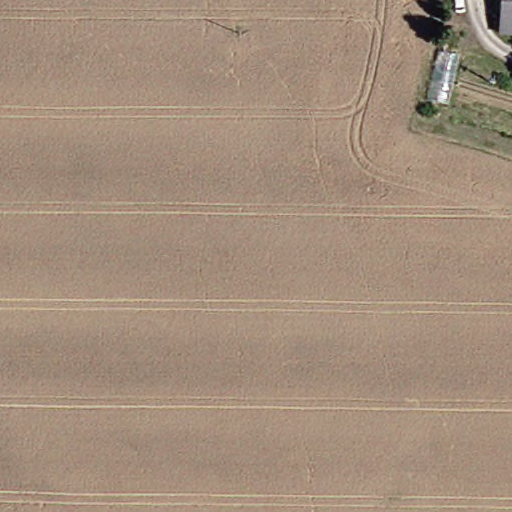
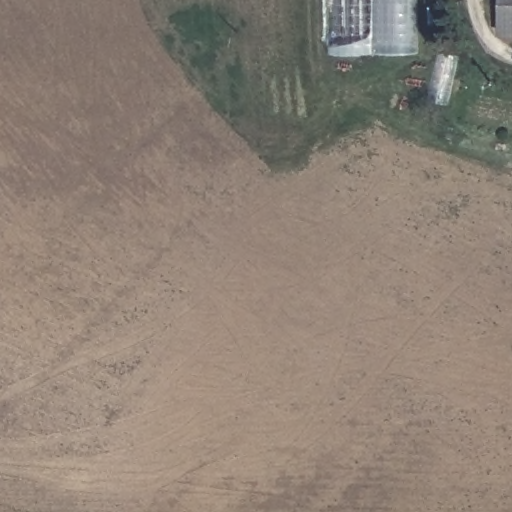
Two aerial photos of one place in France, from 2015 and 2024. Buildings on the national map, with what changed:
new [(417,55),(330,55),(331,0),(418,0),(417,55)]
unchanged [(495,34),(494,0),(512,0),(512,33),(495,34)]

